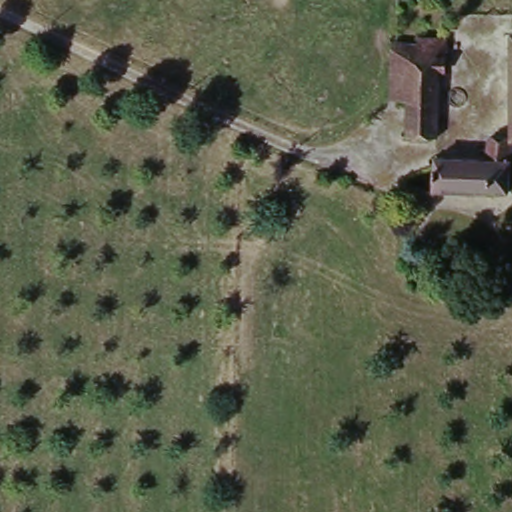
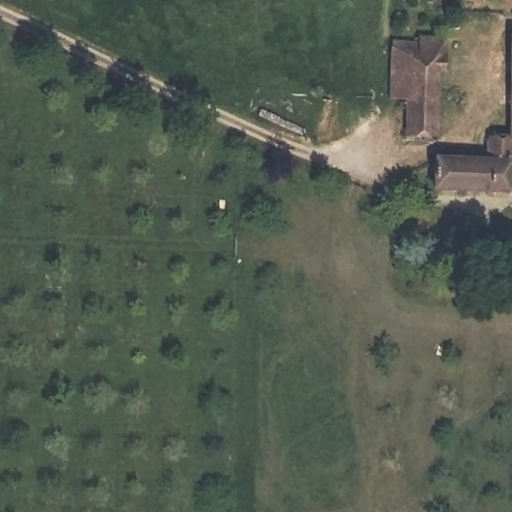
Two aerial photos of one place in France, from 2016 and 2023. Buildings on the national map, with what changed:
unchanged [(408,104),(390,103),(393,44),(417,45),(418,39),(449,40),(448,73),(440,73),(439,142),(406,139),(408,104)]
unchanged [(490,161),(491,137),(510,139),(512,115),(512,199),(433,196),(434,158),(490,161)]

